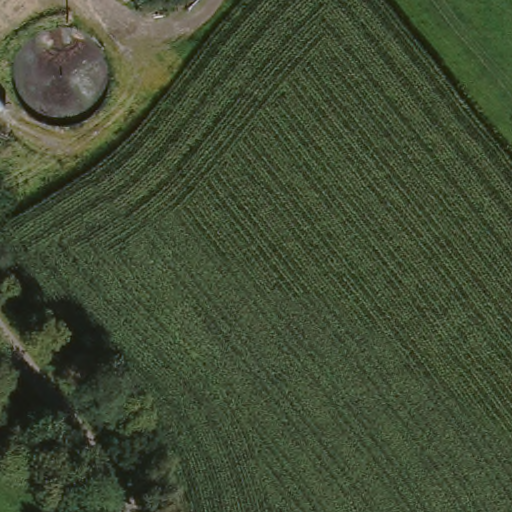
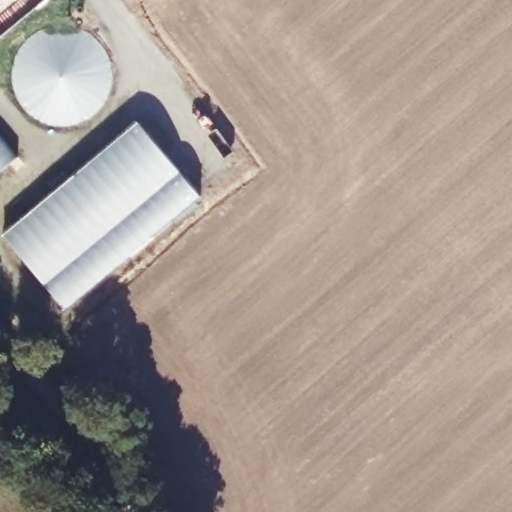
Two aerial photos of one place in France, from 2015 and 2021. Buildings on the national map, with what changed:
new [(138,117),(199,192),(67,307),(4,232),(138,117)]
new [(0,169),(0,133),(18,154),(0,169)]

